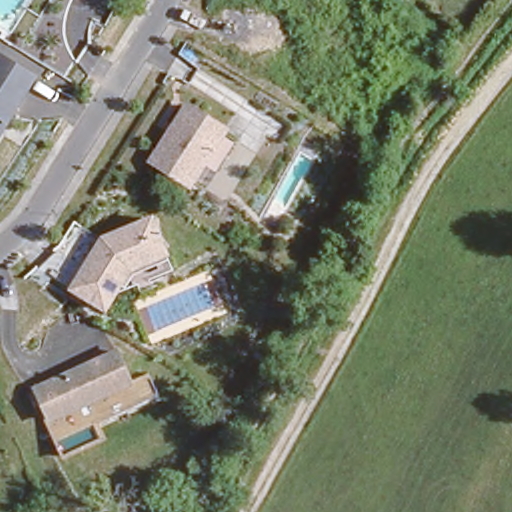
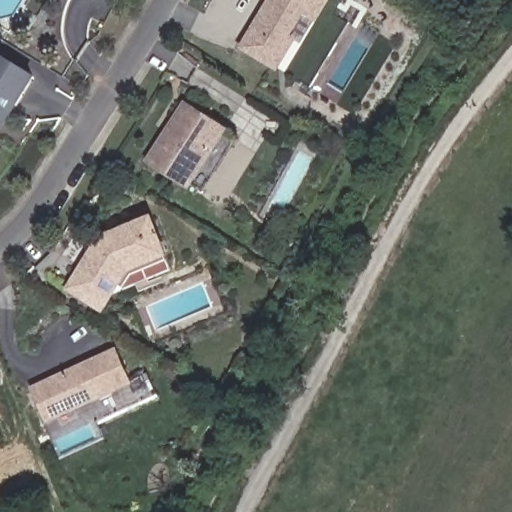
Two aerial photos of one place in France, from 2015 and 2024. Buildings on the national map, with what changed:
new [(316,22),(304,14),(304,15),(271,67),(243,50),(274,0),(329,0),(316,22)]
unchanged [(36,77),(0,142),(0,56),(36,77)]
unchanged [(185,102),(222,126),(187,182),(151,159),(185,102)]
unchanged [(222,126),(236,136),(201,192),(187,182),(222,126)]
unchanged [(95,250),(100,253),(109,238),(107,234),(149,215),(165,251),(131,266),(107,306),(74,285),(95,250)]
unchanged [(119,350),(133,383),(145,377),(154,398),(154,400),(94,426),(90,418),(67,428),(61,415),(52,418),(38,386),(119,350)]

